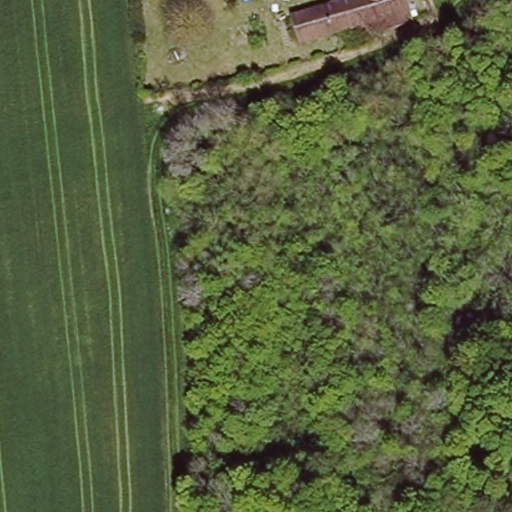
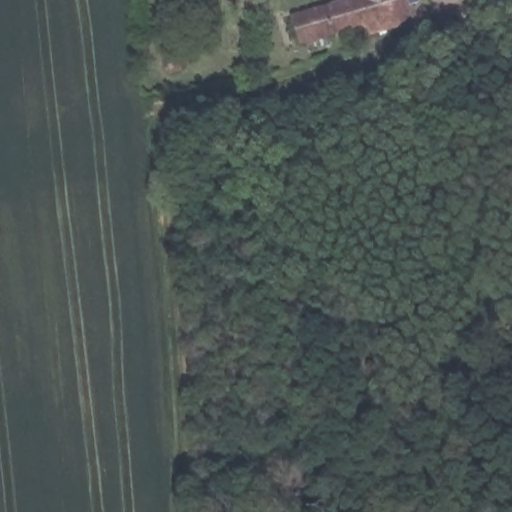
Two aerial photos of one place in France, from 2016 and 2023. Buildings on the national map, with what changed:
unchanged [(360,33),(357,26),(298,42),(292,11),(331,0),(415,0),(417,9),(360,33)]

